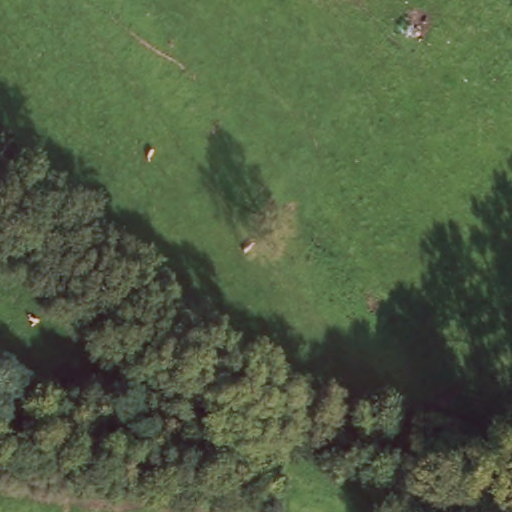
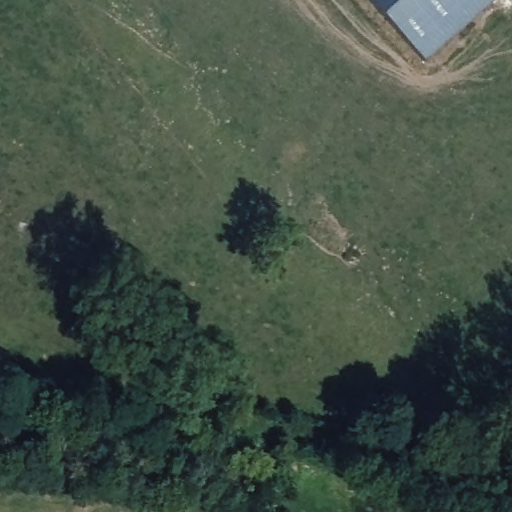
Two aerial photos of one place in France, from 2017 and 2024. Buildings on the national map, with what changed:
new [(368,0),(494,0),(424,62),(368,0)]
unchanged [(82,322),(96,334),(85,347),(72,334),(82,322)]

